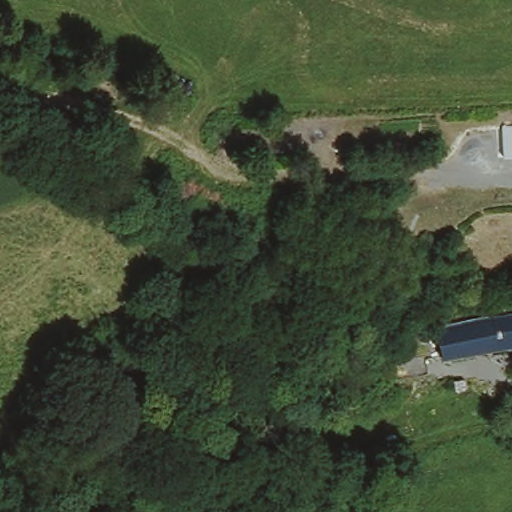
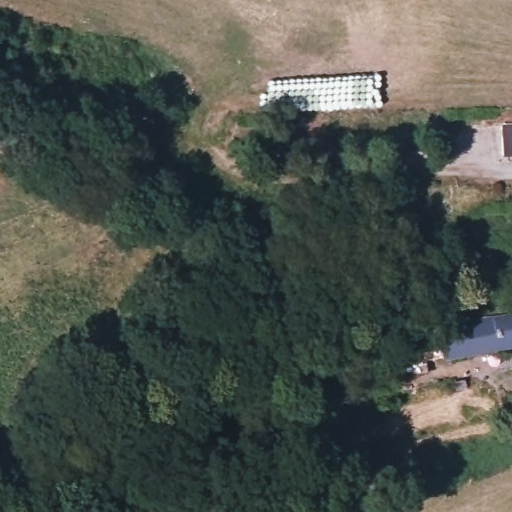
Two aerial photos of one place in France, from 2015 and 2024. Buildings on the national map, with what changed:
unchanged [(498,315),(512,312),(512,346),(505,348),(498,315)]
unchanged [(505,348),(489,351),(449,355),(448,353),(434,355),(429,328),(498,315),(505,348)]
unchanged [(393,374),(389,363),(404,360),(419,357),(428,356),(429,357),(431,367),(427,368),(393,374)]
unchanged [(469,378),(457,380),(455,368),(467,366),(469,378)]

